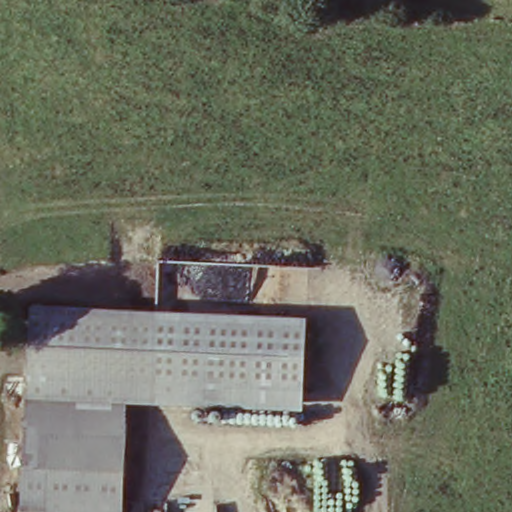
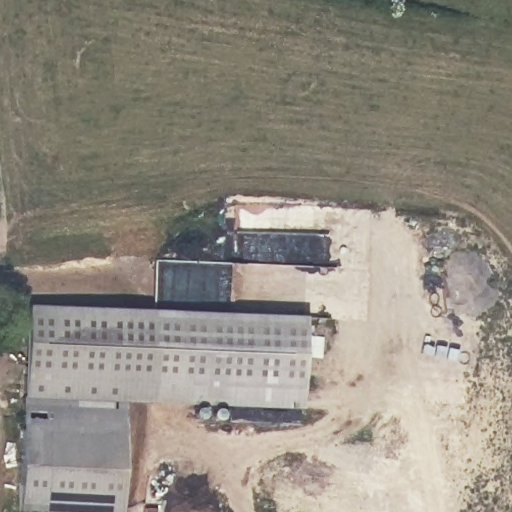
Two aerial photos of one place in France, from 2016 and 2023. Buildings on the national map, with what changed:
unchanged [(28,303),(157,307),(153,402),(123,401),(21,395),(28,303)]
unchanged [(310,315),(306,408),(153,402),(157,307),(310,315)]
unchanged [(42,507),(17,505),(21,395),(123,401),(119,512),(42,512),(42,507)]

